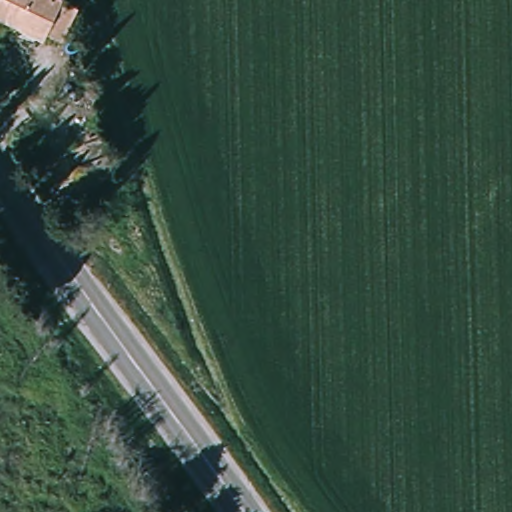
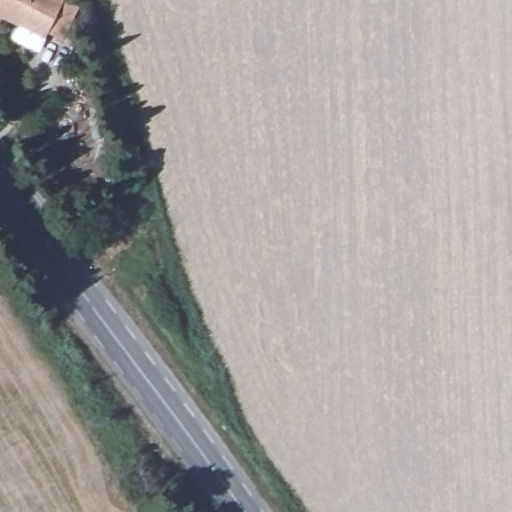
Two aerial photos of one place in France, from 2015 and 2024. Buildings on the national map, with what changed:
unchanged [(0,19),(0,0),(10,0),(1,20),(0,19)]
unchanged [(60,41),(46,35),(45,36),(44,39),(1,20),(10,0),(60,0),(75,7),(60,41)]

